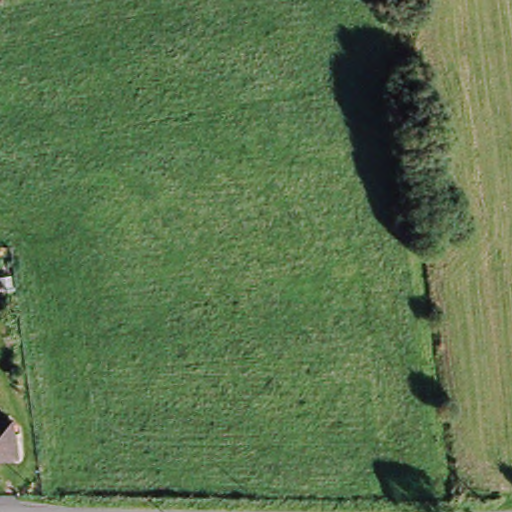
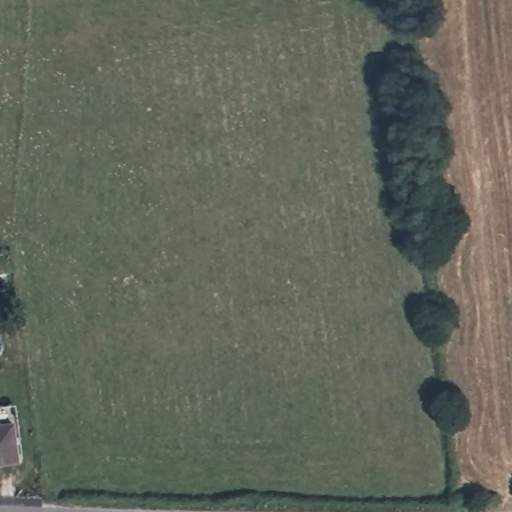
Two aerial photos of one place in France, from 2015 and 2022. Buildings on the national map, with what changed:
unchanged [(0,465),(0,424),(8,422),(13,464),(0,465)]

